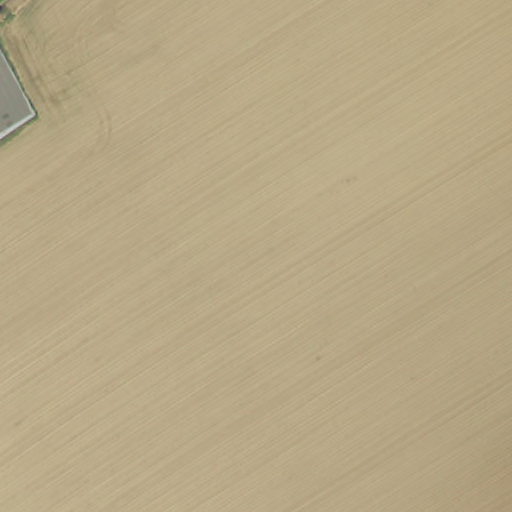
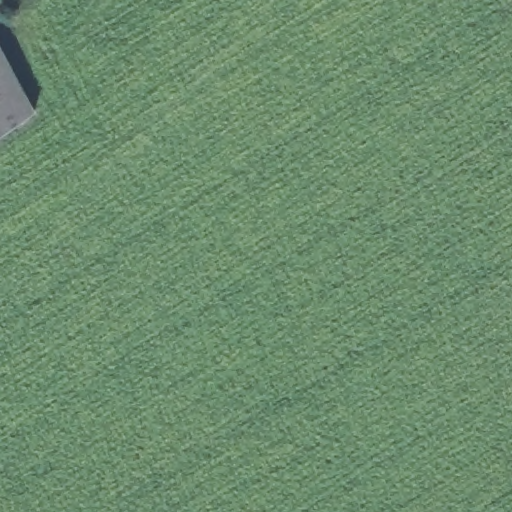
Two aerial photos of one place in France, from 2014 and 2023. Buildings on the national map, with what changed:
unchanged [(25,89),(38,112),(0,139),(0,44),(25,89)]

